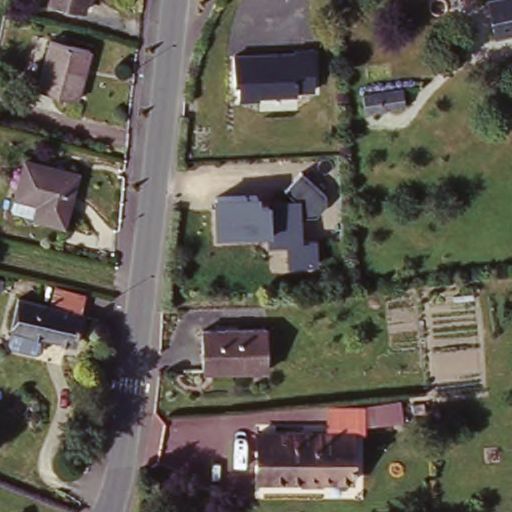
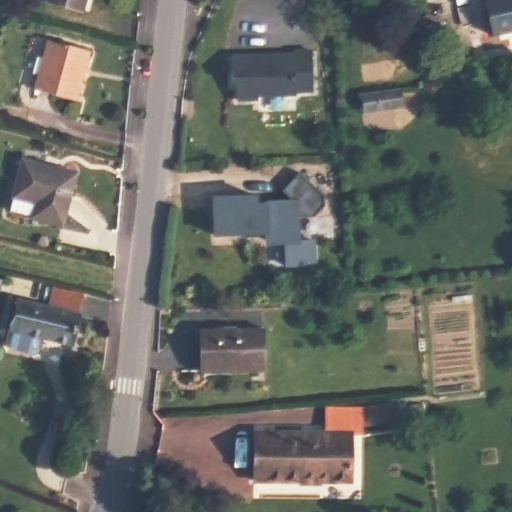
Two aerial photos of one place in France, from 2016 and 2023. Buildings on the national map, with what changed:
unchanged [(499,0),(512,0),(512,35),(498,38),(490,2),(499,0)]
unchanged [(52,42),(93,53),(80,101),(40,92),(52,42)]
unchanged [(296,91),(296,96),(235,98),(232,55),(314,49),(317,91),(296,91)]
unchanged [(362,96),(402,90),(404,107),(362,112),(362,96)]
unchanged [(25,154),(80,168),(67,220),(14,206),(25,154)]
unchanged [(287,267),(287,242),(266,243),(266,233),(215,235),(215,194),(261,191),(261,200),(291,198),(283,189),(301,172),(329,199),(315,215),(301,214),(302,239),(317,239),(318,266),(287,267)]
unchanged [(56,290),(85,297),(80,315),(73,347),(12,331),(9,330),(17,299),(53,308),(56,290)]
unchanged [(203,373),(202,336),(263,333),(263,371),(203,373)]
unchanged [(256,477),(256,431),(330,431),(331,403),(355,403),(354,432),(354,478),(256,477)]

